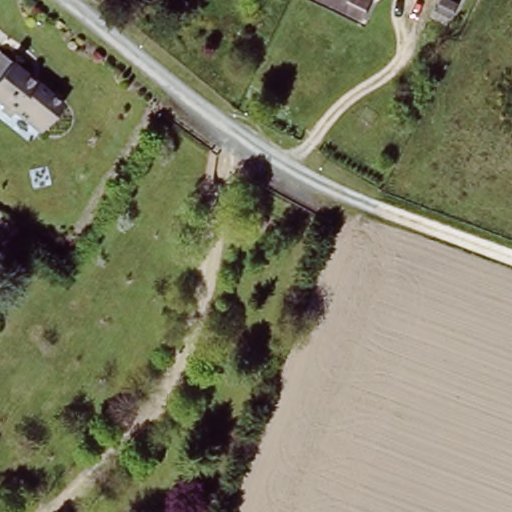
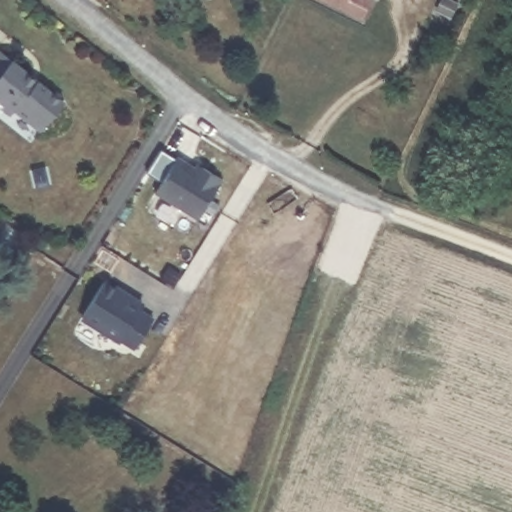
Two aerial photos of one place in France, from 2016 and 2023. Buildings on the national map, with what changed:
unchanged [(319,0),(366,0),(357,19),(319,0)]
unchanged [(30,72),(40,81),(45,76),(72,99),(49,127),(23,107),(18,111),(0,96),(0,53),(7,45),(34,68),(30,72)]
new [(198,219),(154,193),(177,156),(195,166),(197,162),(224,179),(198,219)]
new [(140,310),(154,318),(134,349),(121,341),(120,343),(82,321),(107,279),(145,302),(140,310)]

